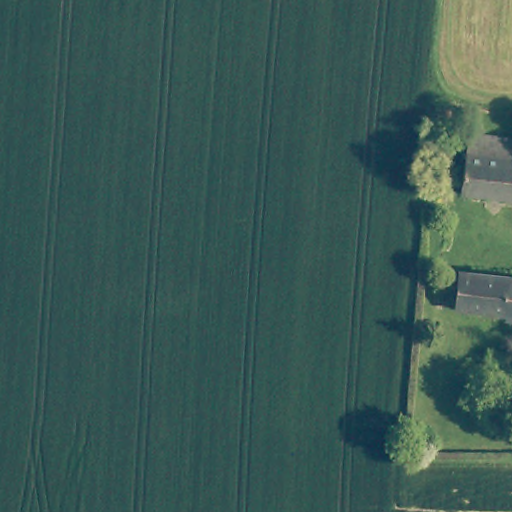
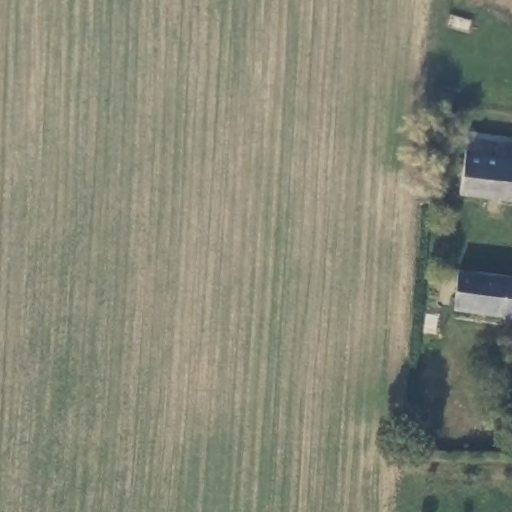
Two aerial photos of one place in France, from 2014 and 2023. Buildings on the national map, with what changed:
unchanged [(512,138),(512,200),(458,191),(469,131),(512,138)]
unchanged [(508,318),(509,312),(458,307),(461,271),(512,276),(512,318),(508,318)]

